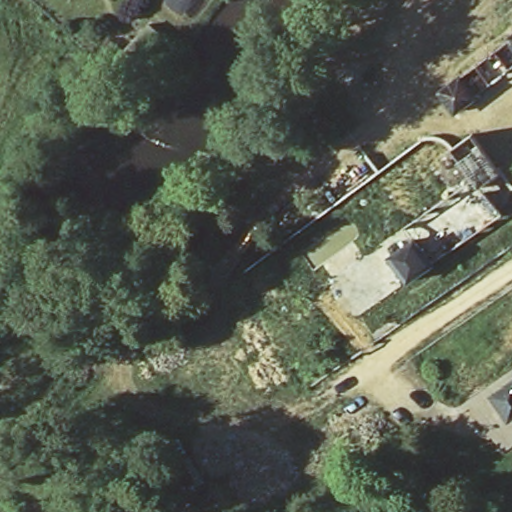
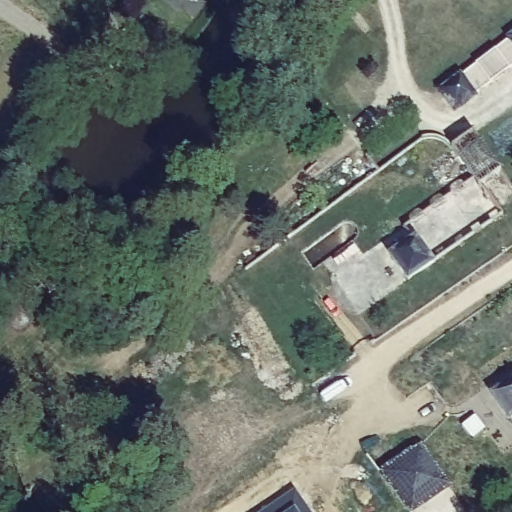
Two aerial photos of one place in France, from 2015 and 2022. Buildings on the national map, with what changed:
unchanged [(512,36),(512,41),(510,37),(512,36)]
unchanged [(387,97),(355,119),(315,60),(347,38),(387,97)]
unchanged [(438,90),(458,76),(473,97),(453,112),(438,90)]
unchanged [(499,170),(480,184),(503,216),(433,265),(406,285),(387,258),(412,241),(403,229),(472,179),(452,149),(472,135),(499,170)]
unchanged [(490,397),(512,382),(512,416),(506,420),(490,397)]
new [(451,482),(412,512),(409,512),(379,468),(422,441),(451,482)]
new [(312,512),(259,512),(295,487),(312,512)]

